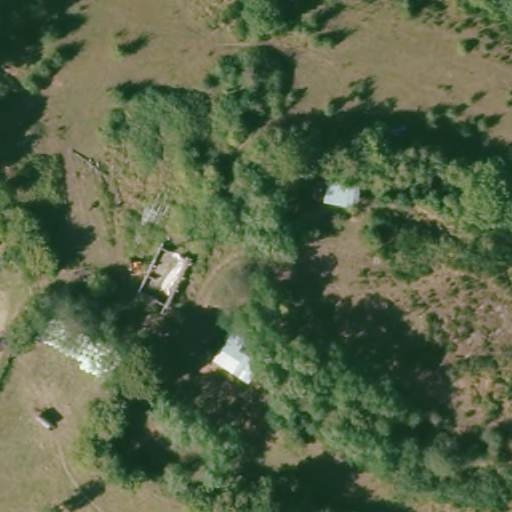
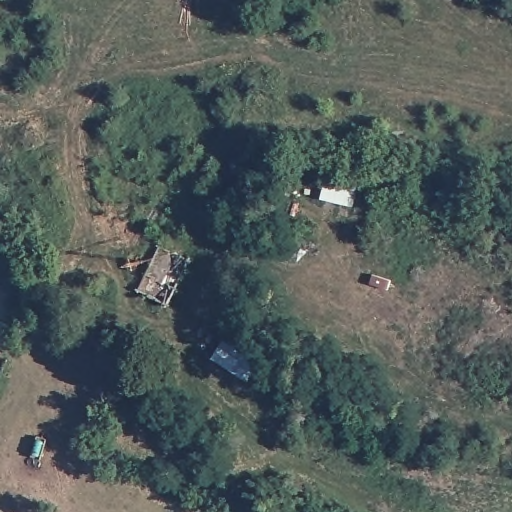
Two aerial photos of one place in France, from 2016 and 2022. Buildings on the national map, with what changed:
unchanged [(320,199),(322,193),(314,194),(317,177),(325,178),(325,175),(358,184),(354,204),(320,199)]
unchanged [(160,244),(188,257),(167,302),(138,289),(160,244)]
unchanged [(211,365),(223,345),(237,322),(270,340),(258,358),(270,365),(253,391),(211,365)]

